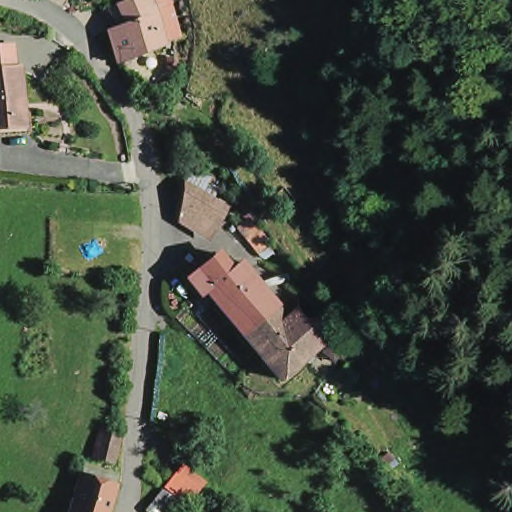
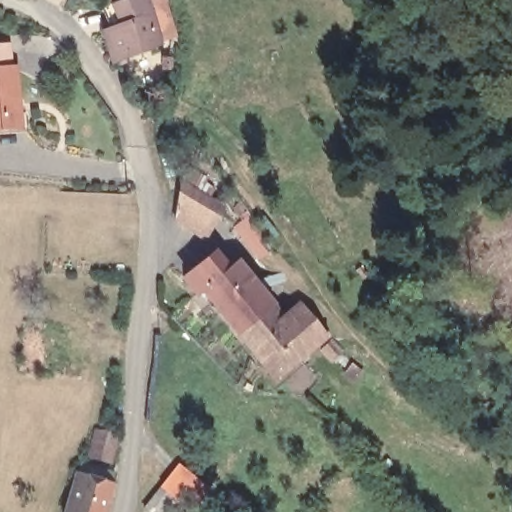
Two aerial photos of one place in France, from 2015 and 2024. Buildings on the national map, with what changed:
unchanged [(100,35),(103,33),(101,25),(97,13),(102,10),(116,5),(114,0),(137,0),(139,5),(151,1),(160,27),(165,42),(155,46),(155,48),(108,65),(100,35)]
unchanged [(16,67),(16,69),(13,69),(13,74),(18,125),(0,127),(0,45),(14,43),(16,67)]
unchanged [(269,51),(275,48),(278,53),(272,57),(269,51)]
unchanged [(223,209),(211,231),(182,214),(187,186),(223,209)]
unchanged [(236,226),(247,218),(255,228),(261,235),(251,244),(245,237),(236,226)]
unchanged [(210,309),(198,294),(192,300),(180,284),(210,259),(222,273),(232,265),(245,281),(255,294),(268,310),(278,322),(296,307),(322,340),(305,355),(270,383),(248,357),(233,338),(210,309)]
unchanged [(316,352),(327,344),(336,355),(325,363),(316,352)]
unchanged [(355,379),(345,372),(352,364),(362,372),(355,379)]
unchanged [(82,464),(92,437),(112,442),(112,447),(104,470),(97,468),(82,464)]
unchanged [(76,471),(110,481),(107,491),(101,512),(64,512),(72,481),(76,471)]
unchanged [(162,486),(173,495),(185,505),(180,512),(151,512),(145,507),(162,486)]

